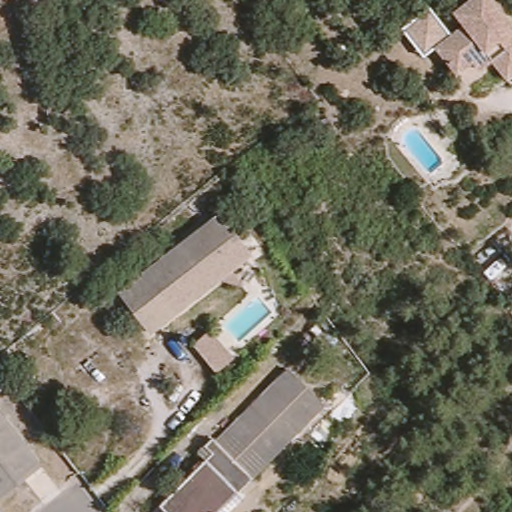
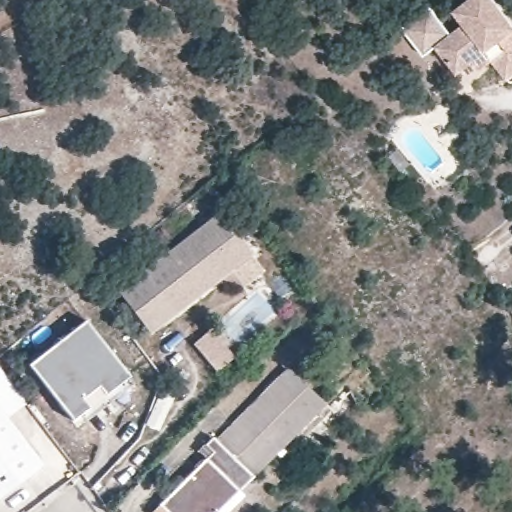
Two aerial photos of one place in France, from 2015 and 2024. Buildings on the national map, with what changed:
unchanged [(507,76),(505,75),(491,59),(479,69),(472,61),(457,73),(435,46),(462,24),(453,11),(460,6),(467,0),(492,0),(512,25),(512,72),(509,75),(507,76)]
unchanged [(121,291),(218,215),(250,256),(152,333),(121,291)]
new [(128,375),(135,383),(91,417),(88,411),(73,422),(30,366),(86,322),(128,375)]
new [(212,332),(237,360),(220,375),(195,347),(212,332)]
unchanged [(324,402),(216,512),(168,512),(164,507),(215,453),(205,444),(217,431),(221,435),(288,365),(324,402)]
unchanged [(0,488),(0,416),(36,462),(0,488)]

